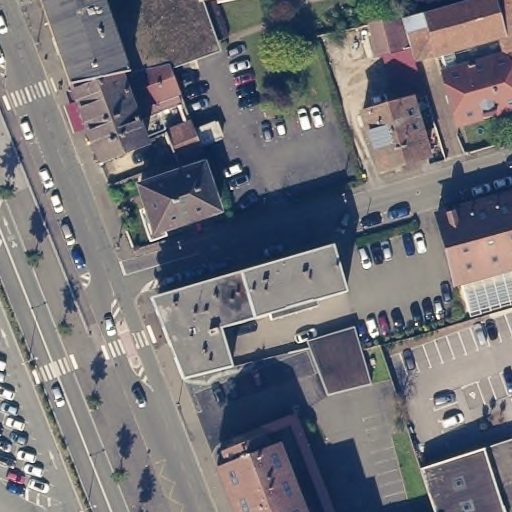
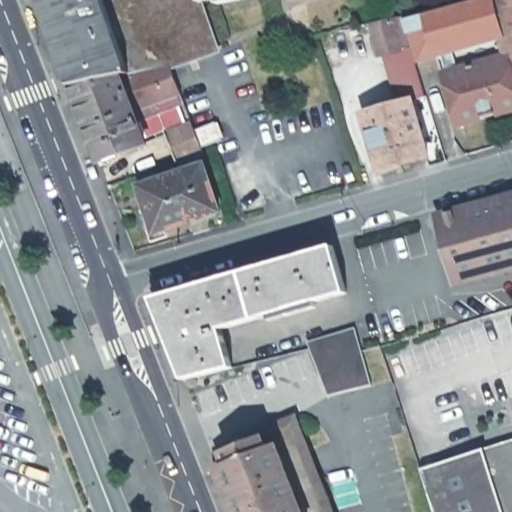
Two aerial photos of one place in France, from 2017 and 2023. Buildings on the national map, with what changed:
unchanged [(50,25),(41,0),(209,0),(200,2),(217,50),(170,66),(71,86),(50,25)]
unchanged [(428,157),(380,171),(363,114),(397,104),(383,55),(380,56),(371,22),(404,16),(404,19),(425,13),(473,0),(492,0),(502,36),(501,37),(437,54),(415,61),(425,97),(412,101),(428,157)]
unchanged [(492,0),(512,0),(512,76),(507,56),(501,37),(502,36),(492,0)]
unchanged [(512,76),(512,110),(457,125),(444,74),(507,56),(512,76)]
unchanged [(71,86),(170,66),(180,92),(134,110),(147,144),(100,162),(71,86)]
unchanged [(177,163),(166,134),(192,123),(195,130),(215,122),(222,140),(202,147),(204,152),(184,161),(177,163)]
unchanged [(155,232),(140,187),(204,165),(220,211),(155,232)]
unchanged [(512,189),(512,267),(453,284),(429,212),(512,189)]
unchanged [(347,292),(222,329),(232,367),(184,380),(156,311),(165,307),(162,294),(334,245),(347,292)]
unchanged [(358,332),(362,346),(372,380),(328,391),(310,343),(308,337),(355,323),(358,332)]
unchanged [(232,458),(227,447),(234,444),(233,442),(240,439),(240,442),(251,437),(248,430),(301,410),(315,445),(325,471),(342,512),(242,512),(222,462),(224,462),(232,458)]
unchanged [(512,436),(512,512),(442,512),(426,464),(512,436)]

